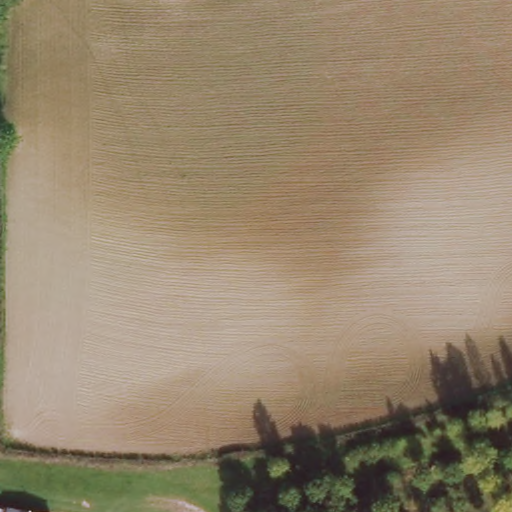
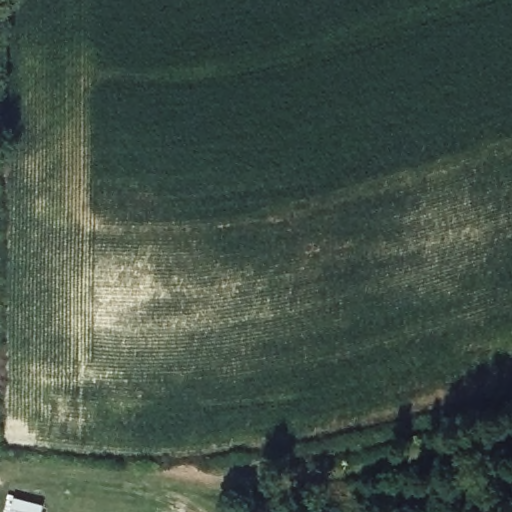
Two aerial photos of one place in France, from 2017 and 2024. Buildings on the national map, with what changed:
unchanged [(7,512),(8,509),(33,512),(7,512)]

